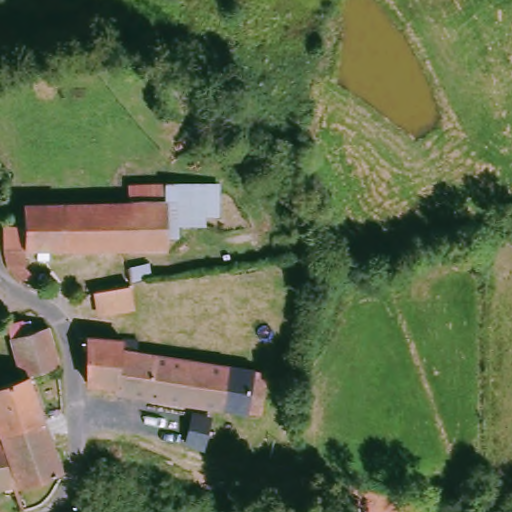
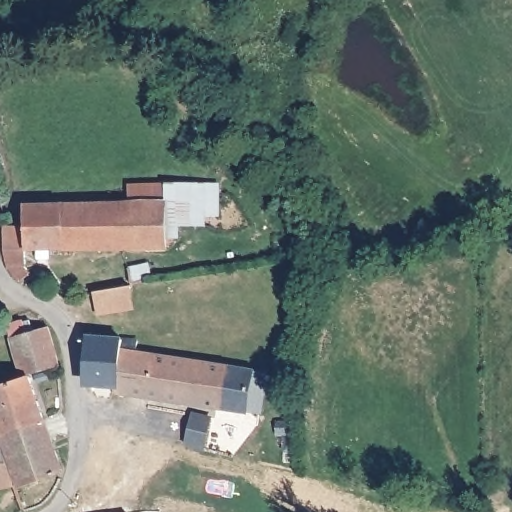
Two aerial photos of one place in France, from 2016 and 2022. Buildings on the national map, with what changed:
unchanged [(130,185),(210,187),(206,230),(181,230),(170,230),(170,207),(129,206),(130,185)]
unchanged [(27,225),(27,203),(129,206),(170,207),(170,230),(181,230),(180,244),(169,243),(169,250),(30,248),(30,267),(35,273),(24,282),(10,256),(7,225),(27,225)]
unchanged [(120,288),(132,287),(132,311),(100,311),(100,304),(99,288),(120,288)]
unchanged [(35,373),(27,376),(11,322),(27,318),(30,332),(51,328),(64,365),(35,373)]
unchanged [(133,336),(135,347),(264,370),(260,412),(114,390),(112,387),(90,384),(85,336),(133,336)]
unchanged [(36,376),(69,470),(24,485),(0,414),(0,387),(36,376)]
unchanged [(198,413),(210,417),(204,433),(205,438),(200,449),(194,447),(185,442),(198,413)]
unchanged [(4,441),(19,482),(0,486),(0,442),(4,441)]

